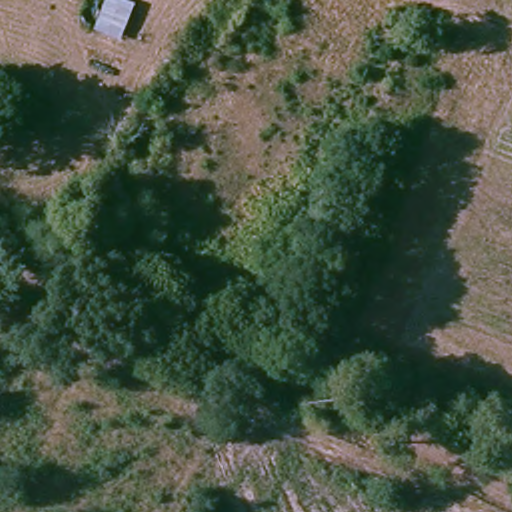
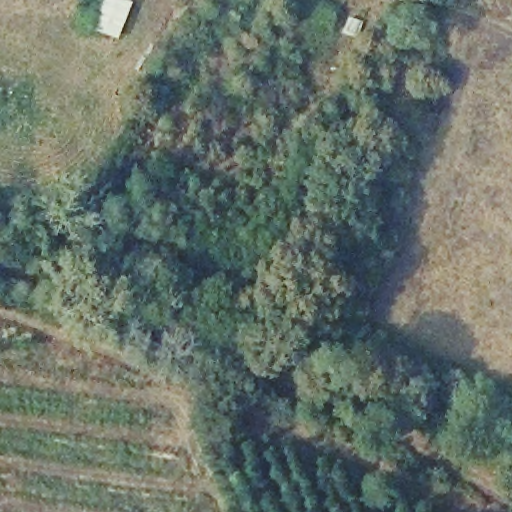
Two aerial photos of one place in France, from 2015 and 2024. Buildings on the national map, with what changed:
unchanged [(121,32),(85,17),(92,0),(131,0),(121,32)]

